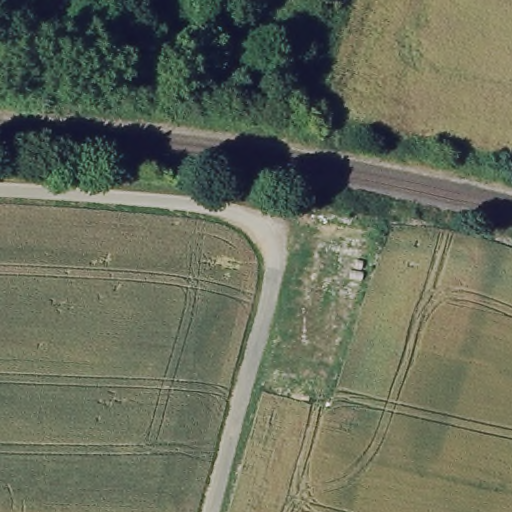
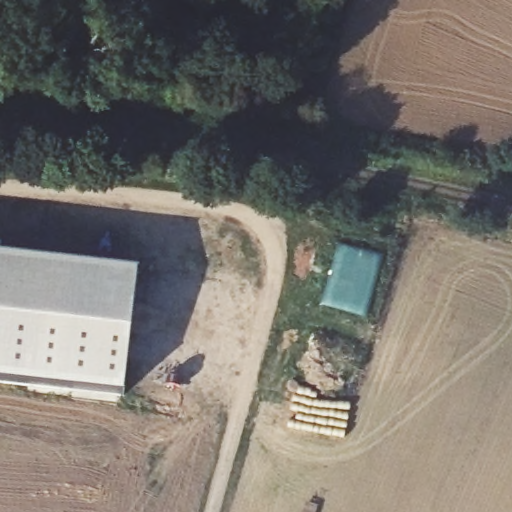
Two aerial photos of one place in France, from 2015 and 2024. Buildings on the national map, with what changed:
new [(0,258),(135,273),(121,397),(0,383),(0,258)]

